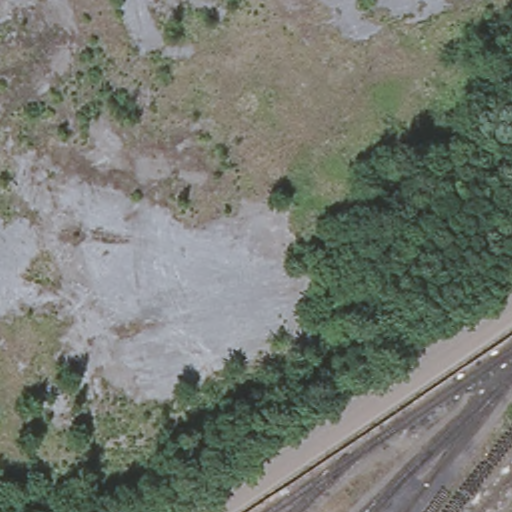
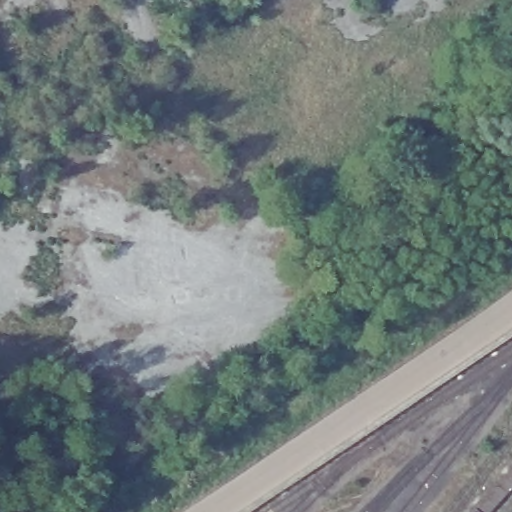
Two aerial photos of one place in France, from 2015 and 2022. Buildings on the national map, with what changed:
unchanged [(512,413),(512,420),(509,417),(512,413)]

